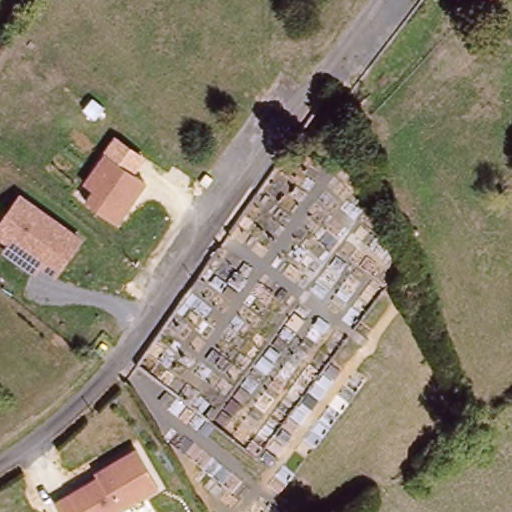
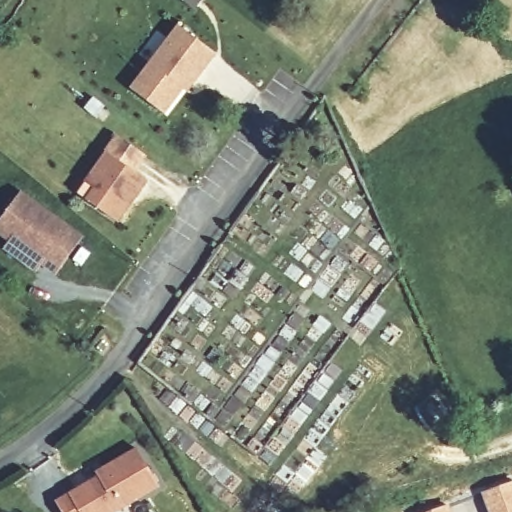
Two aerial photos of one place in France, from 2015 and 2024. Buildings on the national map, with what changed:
new [(182,87),(163,112),(131,87),(180,25),(216,53),(195,81),(187,90),(182,87)]
unchanged [(95,188),(85,181),(115,131),(148,157),(137,171),(150,181),(121,222),(88,200),(95,188)]
unchanged [(87,237),(60,276),(47,267),(40,276),(3,249),(9,241),(0,234),(0,224),(22,189),(87,237)]
unchanged [(119,512),(59,512),(55,504),(105,475),(102,471),(137,450),(159,489),(119,512)]
new [(437,512),(512,485),(512,512),(437,512)]

